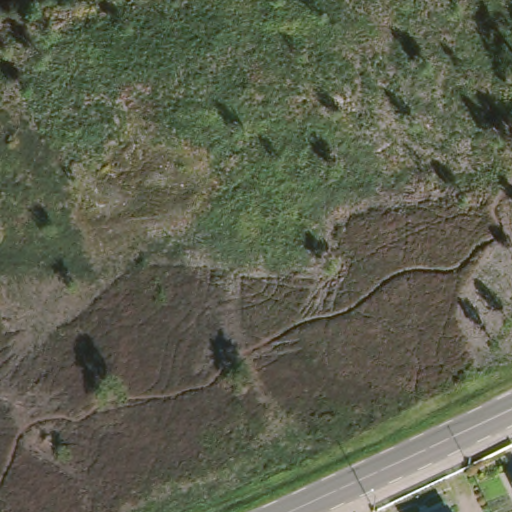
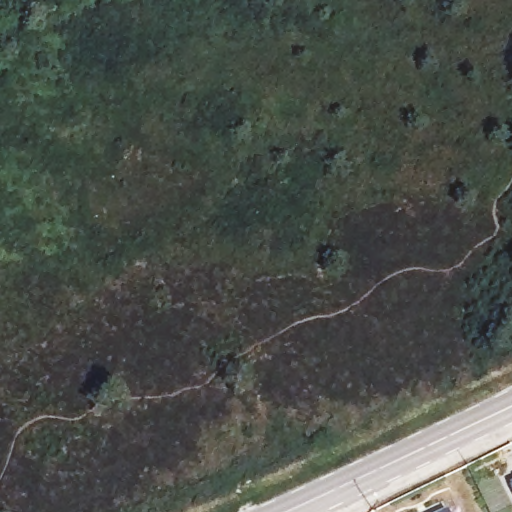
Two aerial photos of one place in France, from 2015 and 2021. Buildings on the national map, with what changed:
unchanged [(510,485),(512,484),(512,490),(510,485)]
unchanged [(444,511),(444,512),(442,512),(444,511)]

